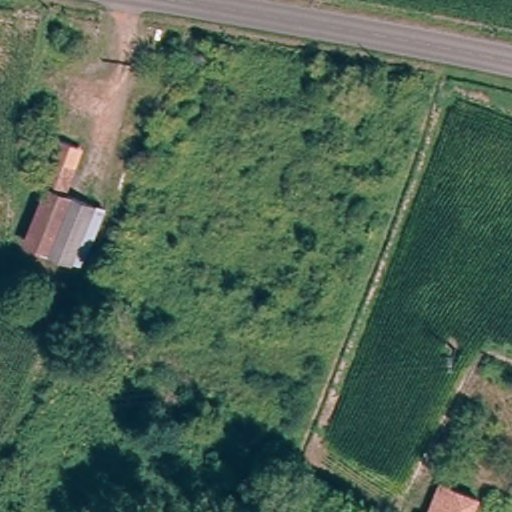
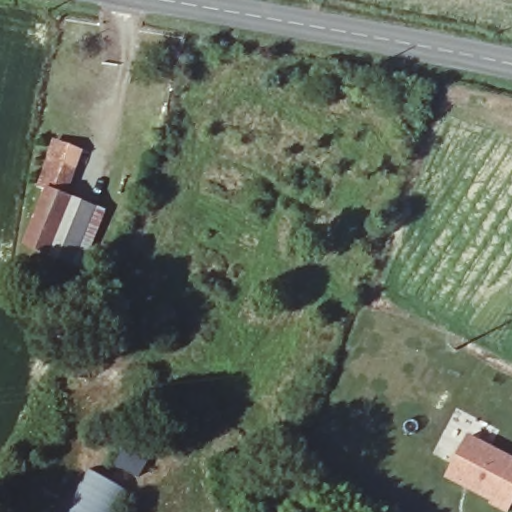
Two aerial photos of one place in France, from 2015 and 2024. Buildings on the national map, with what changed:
unchanged [(82,152),(67,192),(44,183),(59,143),(82,152)]
unchanged [(95,210),(74,260),(30,242),(51,192),(95,210)]
new [(512,507),(509,512),(501,512),(488,506),(491,501),(445,479),(468,435),(512,458),(512,507)]
new [(116,484),(110,493),(117,497),(109,512),(68,512),(92,471),(116,484)]
demolished [(465,512),(428,512),(440,487),(471,499),(465,512)]

